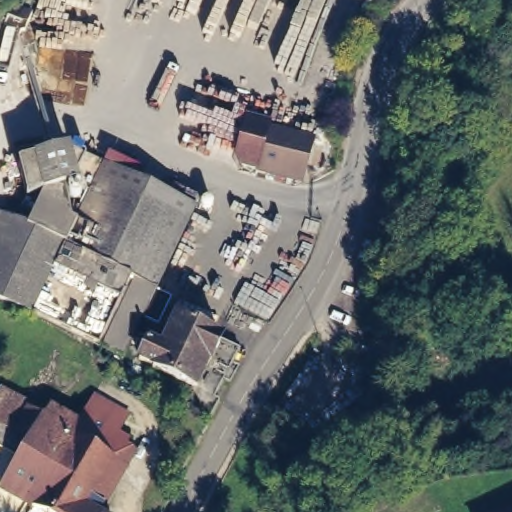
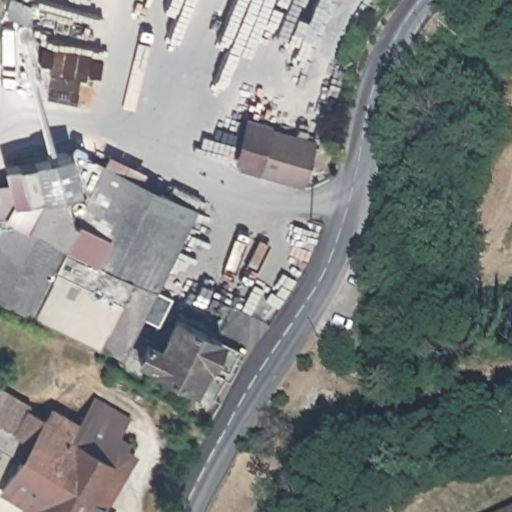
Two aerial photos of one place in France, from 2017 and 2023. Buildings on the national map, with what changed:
unchanged [(260,158),(267,126),(313,139),(302,181),(271,173),(257,169),(260,158)]
unchanged [(30,225),(42,193),(33,159),(75,149),(77,181),(86,199),(105,160),(197,209),(127,359),(0,300),(0,211),(30,225)]
unchanged [(179,315),(225,335),(215,359),(210,357),(198,385),(157,366),(158,363),(143,356),(151,338),(165,346),(179,315)]
unchanged [(0,429),(0,388),(27,404),(25,408),(9,435),(0,429)]
unchanged [(70,435),(82,415),(92,396),(127,416),(117,435),(129,441),(88,510),(91,512),(38,512),(0,490),(0,450),(9,435),(25,408),(70,435)]
unchanged [(512,512),(508,512),(512,510),(512,512)]

